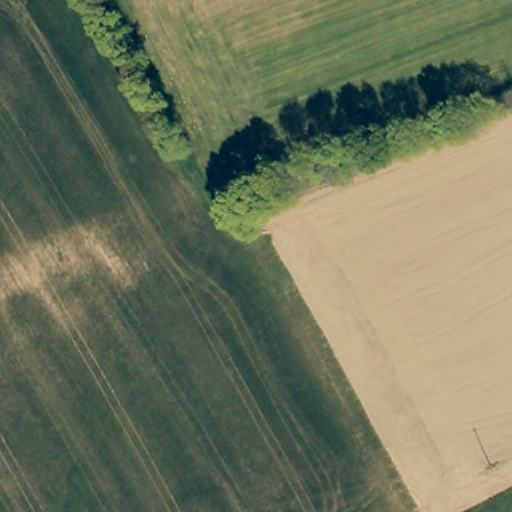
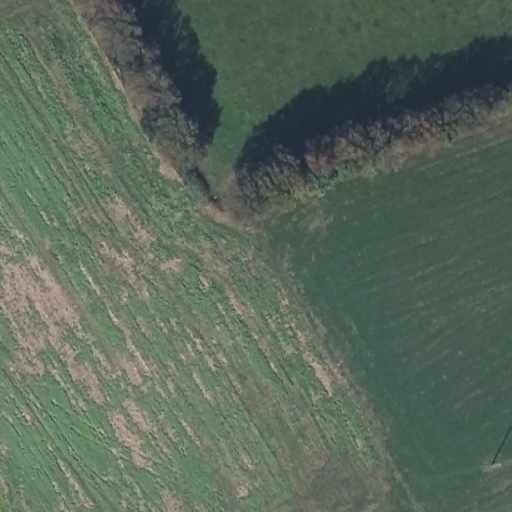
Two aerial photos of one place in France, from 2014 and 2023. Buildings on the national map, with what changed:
[]

